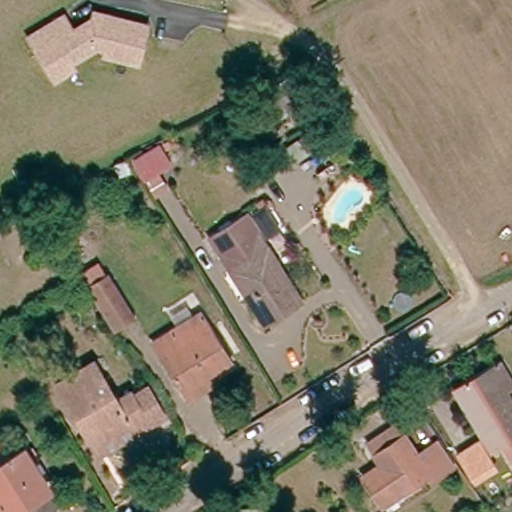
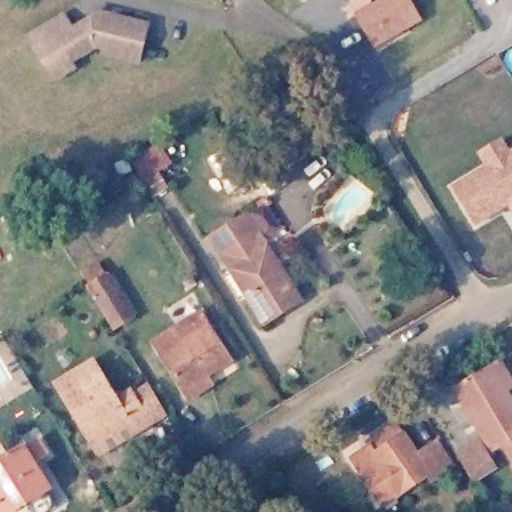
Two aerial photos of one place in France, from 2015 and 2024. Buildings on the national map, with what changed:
new [(356,13),(377,0),(411,0),(423,20),(375,48),(356,13)]
unchanged [(49,80),(40,67),(22,36),(57,15),(66,30),(86,18),(87,19),(89,12),(102,15),(141,25),(131,63),(97,54),(99,49),(90,46),(63,63),(66,70),(49,80)]
new [(511,214),(508,208),(477,226),(452,187),(484,166),(478,154),(504,139),(510,150),(512,149),(512,213),(511,214)]
unchanged [(300,304),(264,326),(209,240),(245,217),(300,304)]
unchanged [(40,239),(51,255),(38,263),(28,246),(40,239)]
unchanged [(85,285),(107,271),(134,314),(111,328),(85,285)]
unchanged [(183,396),(178,388),(149,341),(174,326),(177,331),(202,317),(207,325),(226,357),(201,373),(206,381),(183,396)]
unchanged [(76,426),(52,388),(88,366),(111,403),(126,394),(143,383),(163,415),(146,426),(131,435),(95,457),(76,426)]
unchanged [(502,473),(478,438),(483,435),(463,405),(498,383),(508,376),(512,382),(512,467),(502,473)]
unchanged [(17,455),(33,445),(57,487),(14,512),(0,512),(0,438),(6,435),(17,455)]
unchanged [(364,493),(385,479),(372,459),(401,437),(423,466),(433,460),(444,453),(463,480),(454,486),(443,494),(438,487),(407,508),(401,512),(377,512),(377,511),(364,493)]
unchanged [(490,465),(503,483),(483,497),(470,478),(490,465)]

